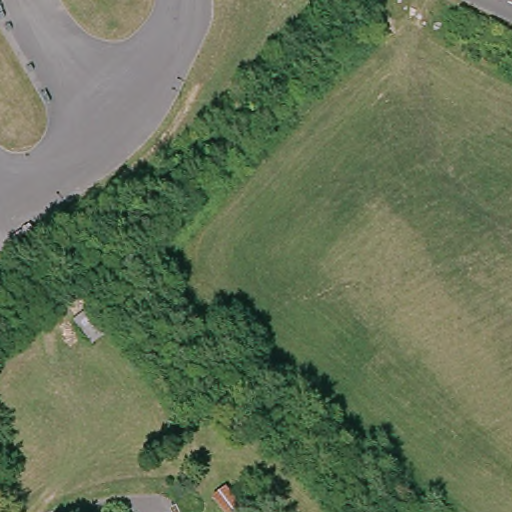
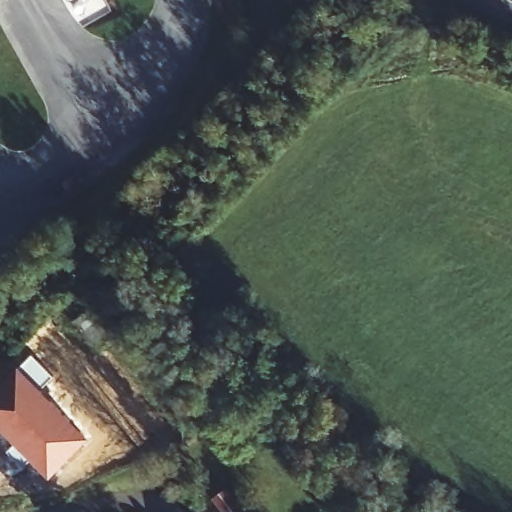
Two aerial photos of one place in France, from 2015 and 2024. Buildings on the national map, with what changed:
unchanged [(93,343),(73,318),(88,305),(108,331),(93,343)]
new [(52,376),(40,387),(90,436),(50,477),(31,457),(23,465),(7,449),(16,441),(3,428),(0,430),(0,382),(19,365),(32,353),(52,376)]

